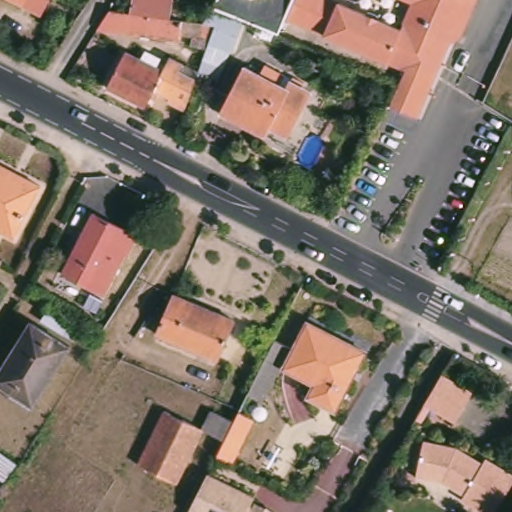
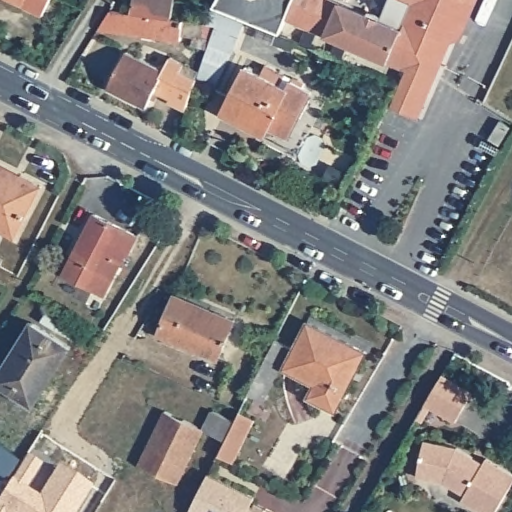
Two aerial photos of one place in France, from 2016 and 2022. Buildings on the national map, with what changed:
unchanged [(13,0),(53,0),(45,16),(13,0)]
unchanged [(211,8),(203,24),(129,13),(131,0),(212,0),(215,1),(211,8)]
unchanged [(449,45),(434,75),(421,78),(311,23),(287,11),(275,34),(219,11),(211,8),(215,1),(215,0),(347,0),(403,30),(416,3),(418,0),(480,0),(459,42),(449,45)]
unchanged [(410,0),(418,0),(416,3),(410,0)]
unchanged [(209,40),(179,36),(179,42),(96,30),(109,9),(129,13),(203,24),(214,26),(209,40)]
unchanged [(184,110),(166,101),(167,98),(154,91),(145,108),(105,88),(125,51),(161,70),(168,56),(183,64),(179,71),(195,79),(184,110)]
unchanged [(292,135),(274,126),(270,136),(225,114),(249,68),(264,75),(270,64),(297,78),(295,81),(314,91),(292,135)]
unchanged [(25,176),(44,187),(18,238),(0,229),(0,164),(25,176)]
unchanged [(132,256),(129,254),(109,296),(66,275),(97,213),(142,234),(132,256)]
unchanged [(222,359),(163,333),(178,295),(239,321),(222,359)]
unchanged [(339,410),(314,397),(320,385),(289,368),(313,324),(369,353),(339,410)]
unchanged [(32,412),(0,391),(0,377),(31,326),(71,351),(32,412)]
unchanged [(294,347),(267,402),(252,394),(279,340),(294,347)]
unchanged [(476,393),(458,423),(428,405),(445,375),(476,393)]
unchanged [(142,464),(168,411),(206,430),(181,483),(142,464)]
unchanged [(237,464),(222,455),(229,441),(206,430),(216,411),(238,422),(243,412),(258,420),(237,464)]
unchanged [(512,490),(499,512),(488,512),(464,499),(467,494),(445,482),(419,479),(425,443),(461,449),(474,456),(486,462),(489,458),(512,471),(512,490)]
new [(22,454),(37,464),(21,488),(34,497),(54,465),(87,487),(71,512),(0,512),(0,489),(22,454)]
unchanged [(257,497),(255,502),(278,512),(190,512),(209,473),(257,497)]

